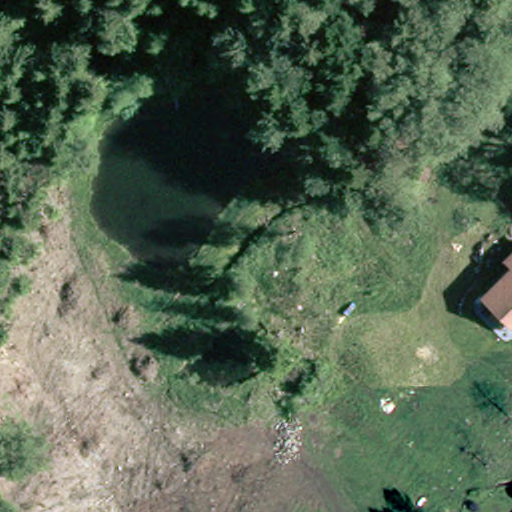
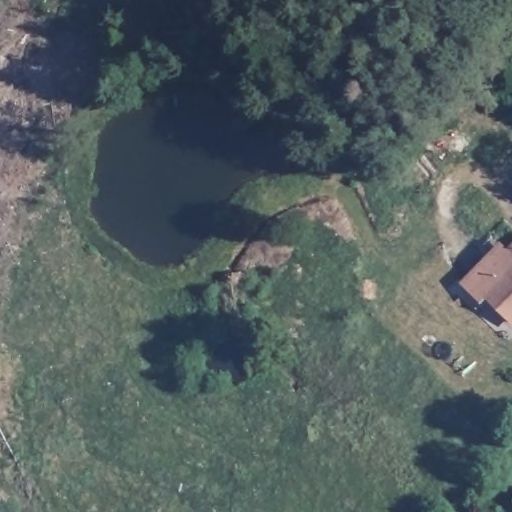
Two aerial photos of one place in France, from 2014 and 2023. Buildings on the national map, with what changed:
unchanged [(509,261),(502,252),(512,243),(512,323),(481,289),(509,261)]

